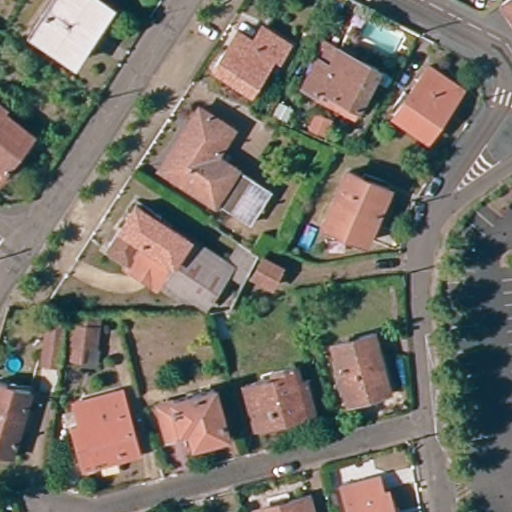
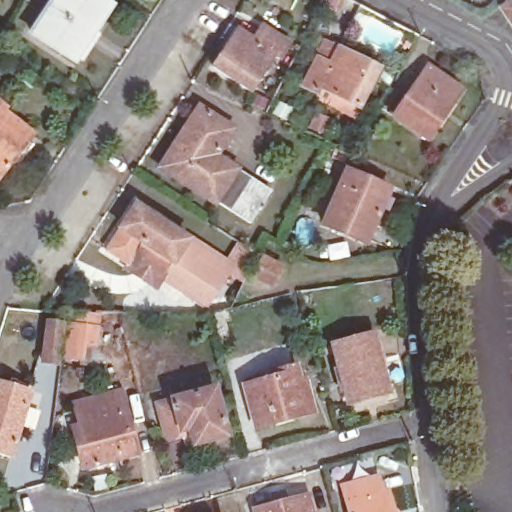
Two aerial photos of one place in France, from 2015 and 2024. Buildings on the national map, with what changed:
unchanged [(74,50),(38,26),(55,0),(116,0),(100,23),(79,54),(74,50)]
unchanged [(512,25),(495,1),(497,0),(512,0),(512,25)]
unchanged [(289,37),(279,52),(274,49),(251,84),(215,60),(226,42),(230,45),(242,27),(255,36),(265,21),(289,37)]
unchanged [(318,92),(320,87),(305,79),(320,51),(329,36),(362,53),(380,63),(360,102),(355,112),(318,92)]
unchanged [(463,85),(454,97),(451,96),(438,114),(441,116),(430,132),(396,108),(429,61),(463,85)]
unchanged [(6,102),(3,105),(33,128),(4,166),(0,163),(0,97),(6,102)]
unchanged [(232,127),(216,152),(271,187),(251,219),(217,197),(216,200),(173,172),(179,162),(171,156),(192,125),(188,122),(199,106),(232,127)]
unchanged [(390,181),(367,234),(326,217),(350,164),(390,181)]
unchanged [(238,264),(213,300),(171,272),(165,281),(113,247),(142,202),(238,264)]
unchanged [(288,264),(278,282),(259,272),(270,254),(288,264)]
unchanged [(59,361),(44,359),(49,320),(64,322),(59,361)]
unchanged [(100,326),(98,342),(86,341),(84,356),(68,353),(72,322),(100,326)]
unchanged [(389,388),(351,398),(336,342),(374,331),(389,388)]
unchanged [(304,382),(308,381),(314,403),(258,417),(248,377),(276,370),(275,365),(297,358),(304,382)]
unchanged [(11,453),(0,450),(0,377),(33,387),(11,453)]
unchanged [(79,417),(73,393),(79,392),(123,381),(141,445),(83,460),(78,442),(72,418),(79,417)]
unchanged [(228,427),(206,432),(203,422),(169,431),(160,396),(215,381),(228,427)]
unchanged [(388,490),(394,512),(352,512),(344,484),(379,475),(383,491),(388,490)]
unchanged [(258,512),(257,511),(271,507),(273,512),(290,507),(289,503),(308,498),(312,512),(258,512)]

